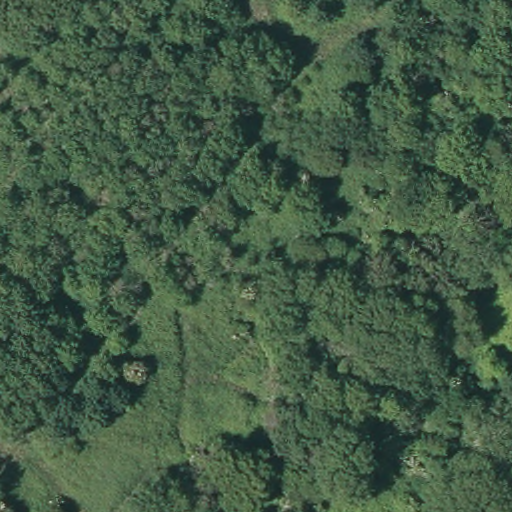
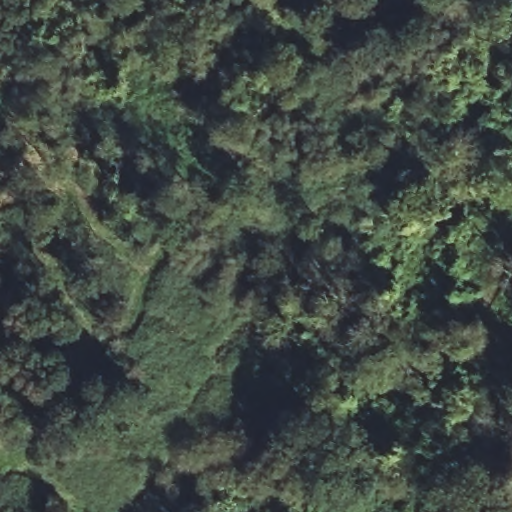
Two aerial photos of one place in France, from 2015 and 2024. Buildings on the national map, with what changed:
[]

